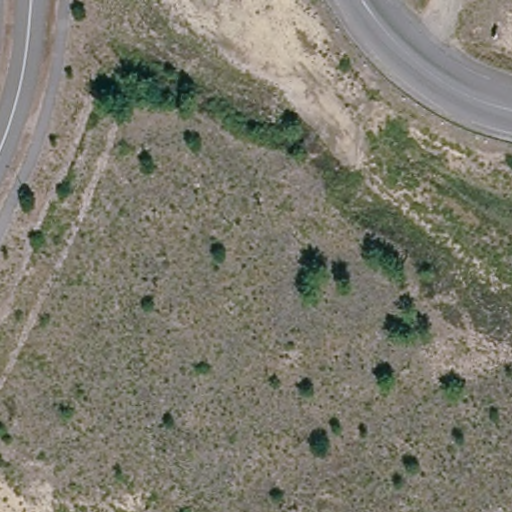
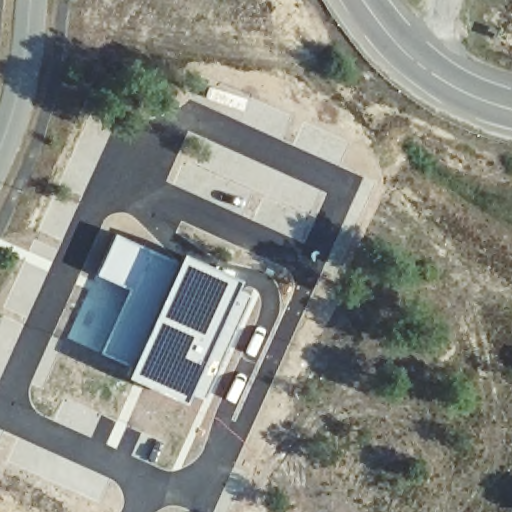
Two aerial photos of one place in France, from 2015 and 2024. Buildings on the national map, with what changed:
new [(115,231),(177,259),(129,365),(99,352),(126,290),(95,275),(115,231)]
new [(129,365),(177,259),(182,248),(242,276),(240,280),(214,330),(188,394),(184,403),(125,375),(129,365)]
new [(214,330),(240,280),(261,293),(244,326),(241,325),(202,400),(188,394),(214,330)]

